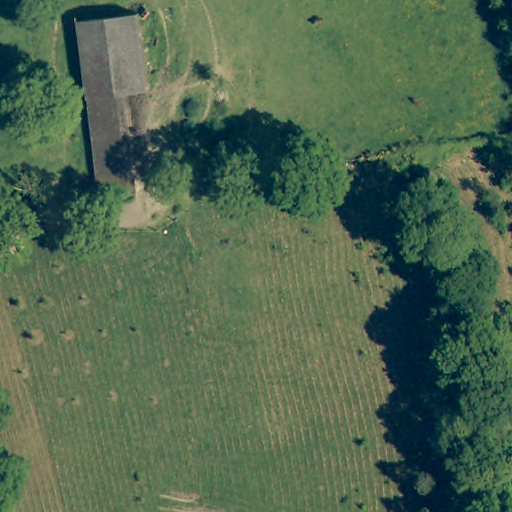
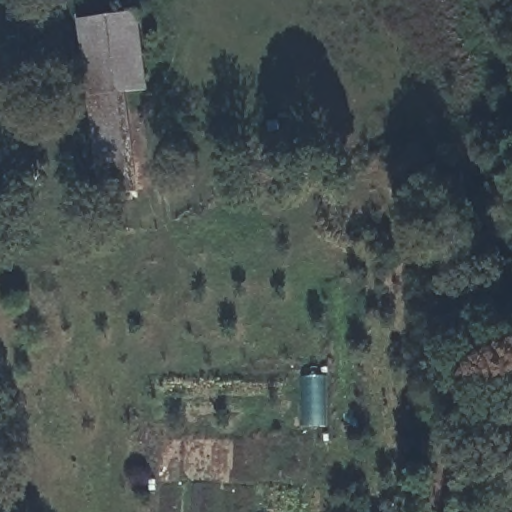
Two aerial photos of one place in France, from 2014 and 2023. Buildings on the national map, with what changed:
unchanged [(150,89),(121,90),(133,195),(101,198),(82,19),(141,14),(150,89)]

